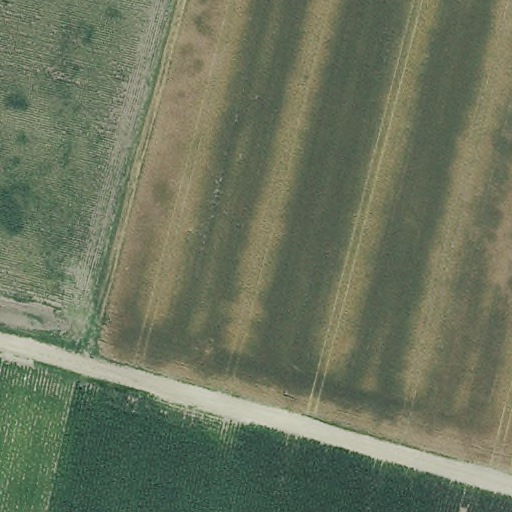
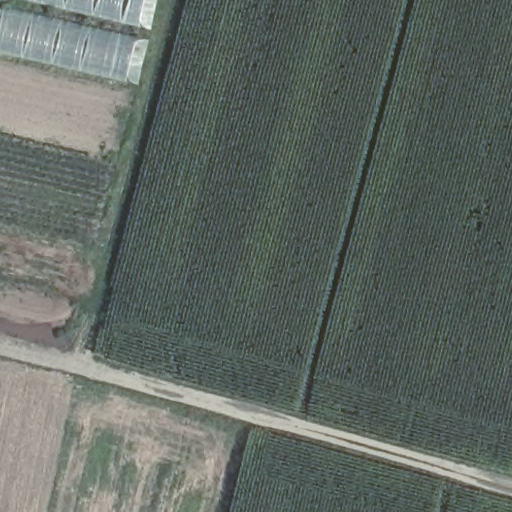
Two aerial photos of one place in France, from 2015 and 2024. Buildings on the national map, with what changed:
new [(0,53),(0,0),(145,0),(125,82),(0,53)]

